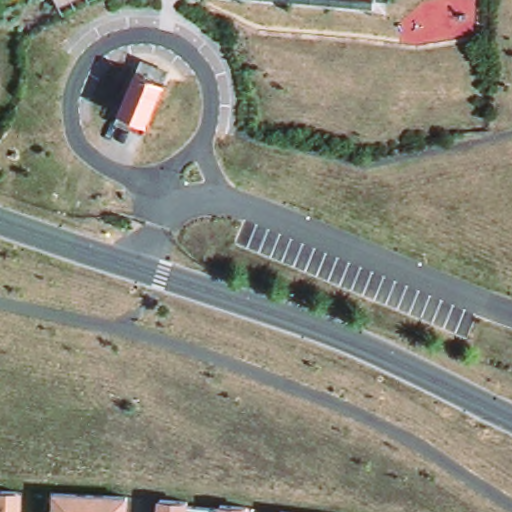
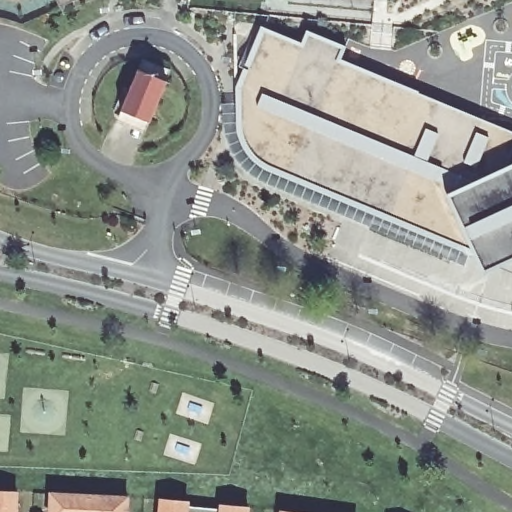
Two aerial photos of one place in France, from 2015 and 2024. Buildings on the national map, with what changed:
new [(307,30),(345,47),(339,60),(512,133),(512,259),(483,272),(475,254),(280,173),(264,166),(254,158),(245,148),(240,134),(235,86),(262,27),(302,42),(307,30)]
unchanged [(154,128),(125,117),(142,75),(170,86),(154,128)]
unchanged [(22,490),(21,512),(0,512),(0,490),(22,490)]
unchanged [(50,491),(130,494),(130,512),(49,512),(50,491)]
unchanged [(160,496),(192,500),(191,507),(220,511),(220,502),(252,507),(252,512),(159,512),(160,496)]
unchanged [(280,510),(296,512),(280,512),(280,510)]

